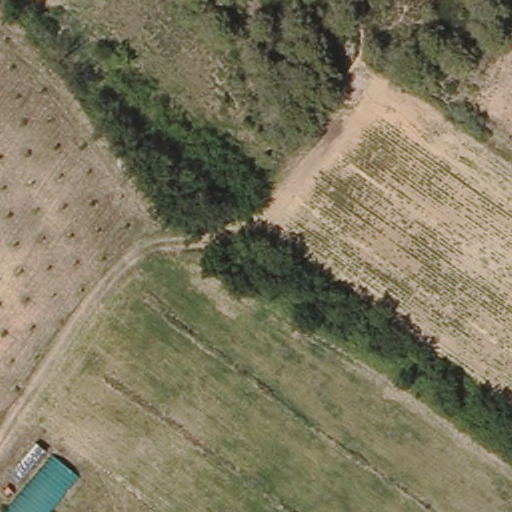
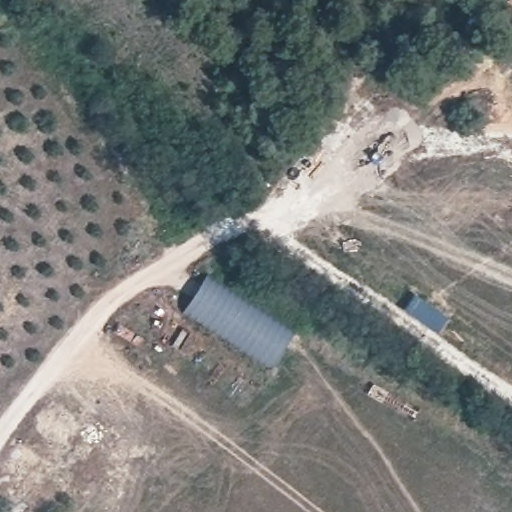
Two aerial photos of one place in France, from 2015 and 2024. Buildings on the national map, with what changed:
new [(296,335),(273,369),(185,310),(207,276),(296,335)]
demolished [(53,458),(80,479),(53,512),(11,512),(53,458)]

